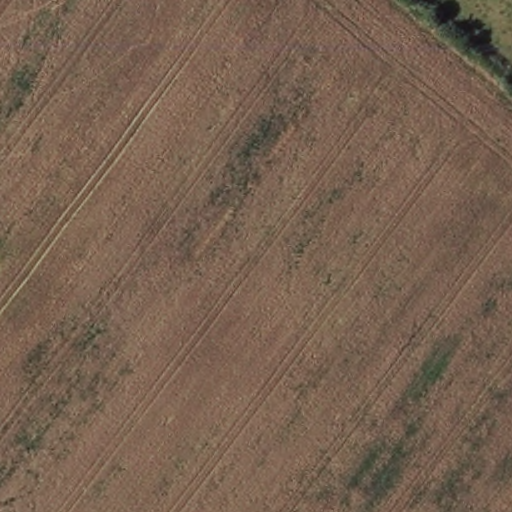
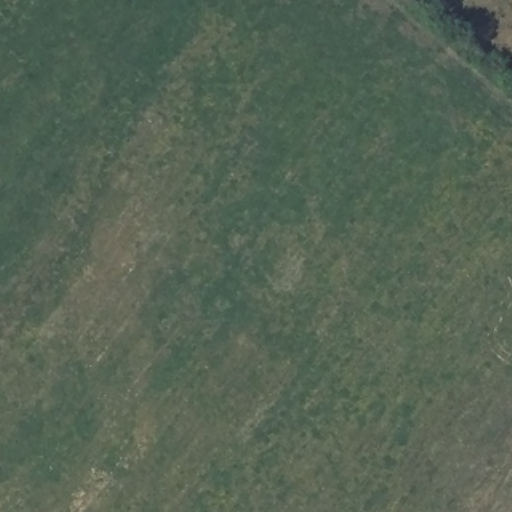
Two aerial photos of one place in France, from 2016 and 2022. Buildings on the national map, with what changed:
[]

